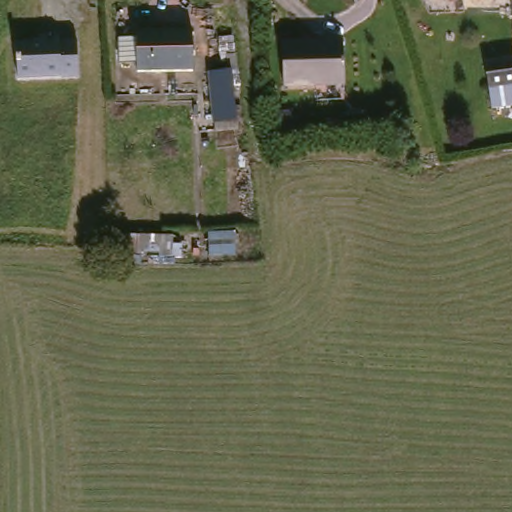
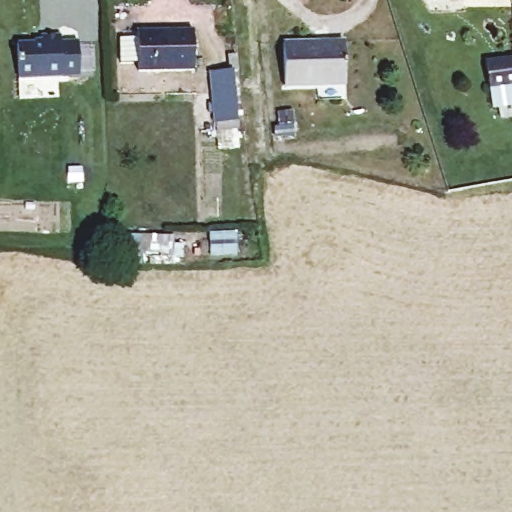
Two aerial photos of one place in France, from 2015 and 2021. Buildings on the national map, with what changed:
unchanged [(195,36),(192,73),(138,70),(141,33),(195,36)]
unchanged [(19,77),(15,44),(32,43),(35,38),(55,37),(59,43),(76,42),(77,76),(19,77)]
unchanged [(231,54),(226,55),(229,102),(210,104),(205,57),(220,55),(220,39),(230,37),(231,54)]
unchanged [(345,46),(340,91),(280,85),(285,41),(345,46)]
unchanged [(481,65),(512,59),(512,113),(491,114),(481,65)]

